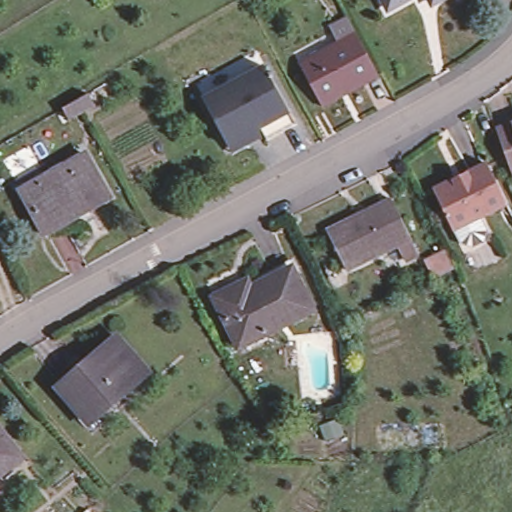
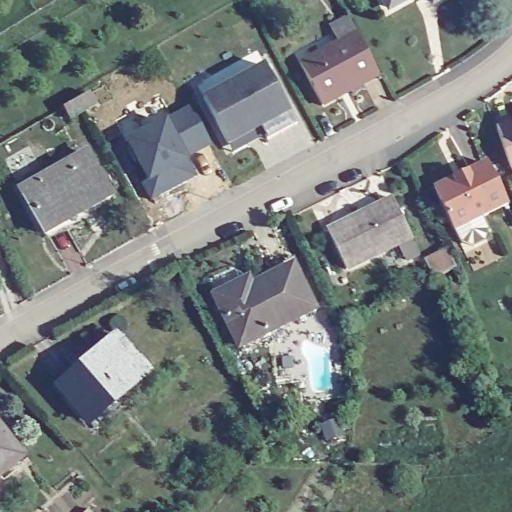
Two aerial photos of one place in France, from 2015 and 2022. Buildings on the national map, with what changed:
unchanged [(384,0),(410,0),(390,11),(384,0)]
unchanged [(431,0),(443,0),(435,4),(431,0)]
unchanged [(342,97),(323,108),(300,66),(338,45),(331,31),(349,21),(357,35),(377,73),(380,78),(342,97)]
unchanged [(233,142),(209,96),(271,63),(302,122),(272,137),(269,132),(237,148),(233,142)]
unchanged [(65,109),(78,102),(90,96),(97,107),(85,114),(72,121),(65,109)]
new [(190,105),(208,142),(187,152),(197,174),(150,198),(140,181),(150,176),(125,134),(190,105)]
unchanged [(497,132),(512,127),(512,174),(497,132)]
unchanged [(110,199),(92,210),(97,221),(67,233),(63,226),(46,236),(21,192),(87,155),(110,199)]
unchanged [(483,239),(472,244),(463,241),(457,227),(454,228),(434,186),(455,176),(457,179),(469,174),(467,170),(487,161),(507,202),(481,215),(487,227),(483,239)]
unchanged [(405,257),(398,242),(346,267),(327,229),(392,196),(412,235),(410,236),(417,251),(405,257)]
unchanged [(456,270),(435,281),(425,263),(447,252),(456,270)]
unchanged [(314,313),(240,350),(215,300),(235,289),(240,295),(292,269),(314,313)]
unchanged [(148,375),(91,425),(59,387),(117,338),(148,375)]
unchanged [(0,469),(0,431),(18,454),(0,469)]

